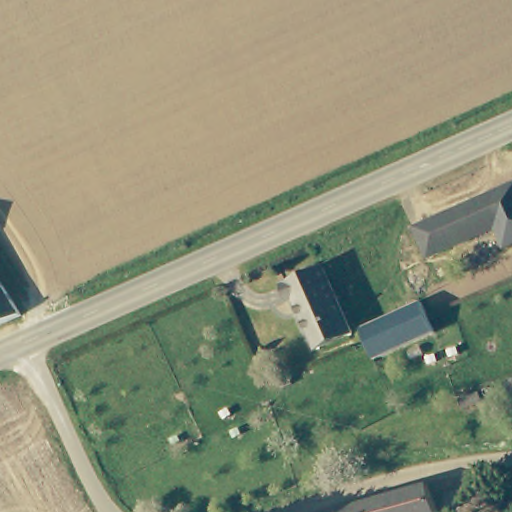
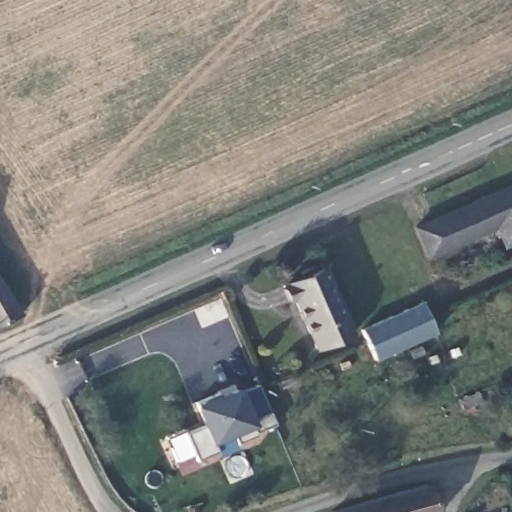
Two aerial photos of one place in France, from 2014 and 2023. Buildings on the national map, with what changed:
unchanged [(512,189),(512,237),(507,227),(492,198),(512,189)]
unchanged [(435,257),(423,231),(492,198),(507,227),(435,257)]
unchanged [(350,334),(315,349),(295,301),(288,304),(280,286),(323,269),(350,334)]
unchanged [(0,325),(0,279),(22,315),(0,325)]
unchanged [(418,303),(432,332),(372,361),(358,331),(418,303)]
new [(186,434),(205,426),(195,402),(215,393),(216,397),(240,387),(241,392),(255,386),(272,426),(235,442),(233,437),(214,445),(216,452),(197,460),(186,434)]
unchanged [(342,510),(435,488),(440,512),(343,512),(342,510)]

